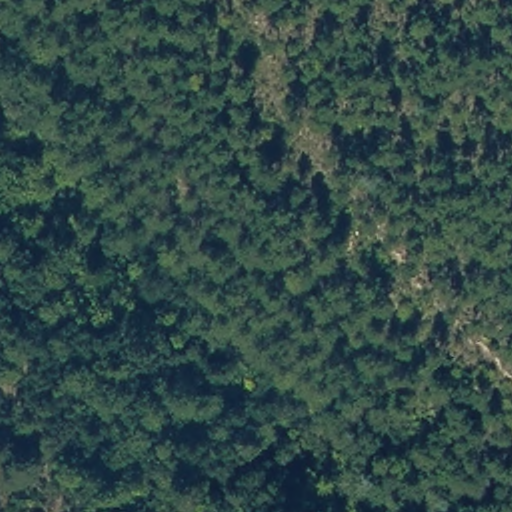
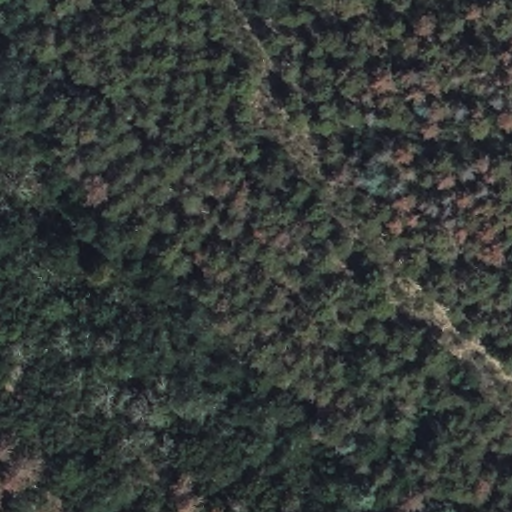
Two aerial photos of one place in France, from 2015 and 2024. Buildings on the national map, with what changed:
[]

